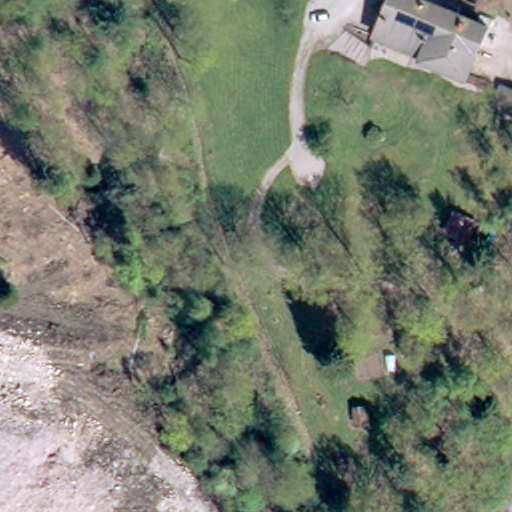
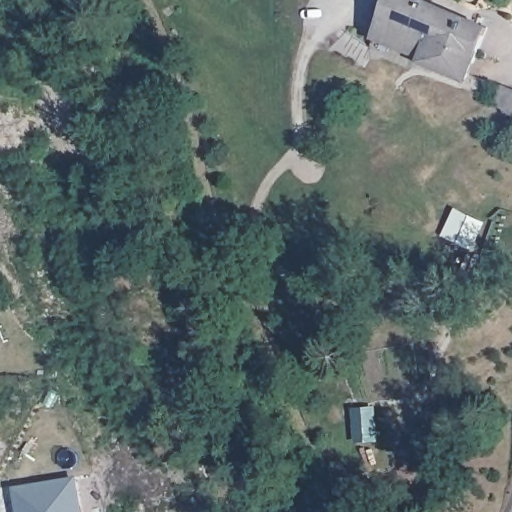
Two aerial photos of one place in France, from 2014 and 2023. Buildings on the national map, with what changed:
unchanged [(391,0),(420,0),(488,29),(469,81),(468,82),(424,63),(426,58),(377,37),(382,25),(391,0)]
unchanged [(510,104),(512,100),(512,105),(510,104)]
new [(13,487),(26,485),(72,477),(77,512),(17,512),(17,510),(13,487)]

